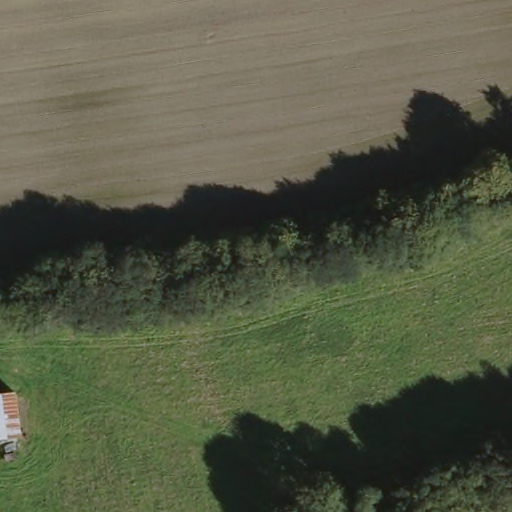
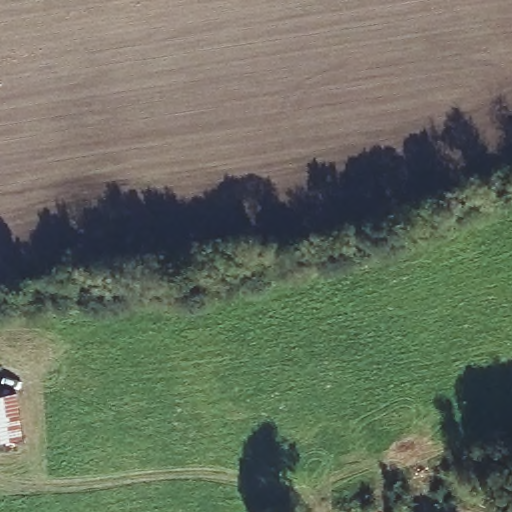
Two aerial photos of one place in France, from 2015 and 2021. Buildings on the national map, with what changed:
unchanged [(22,441),(0,445),(0,396),(16,394),(22,441)]

